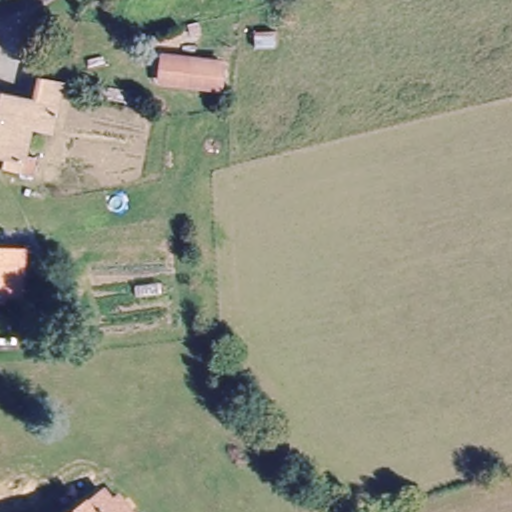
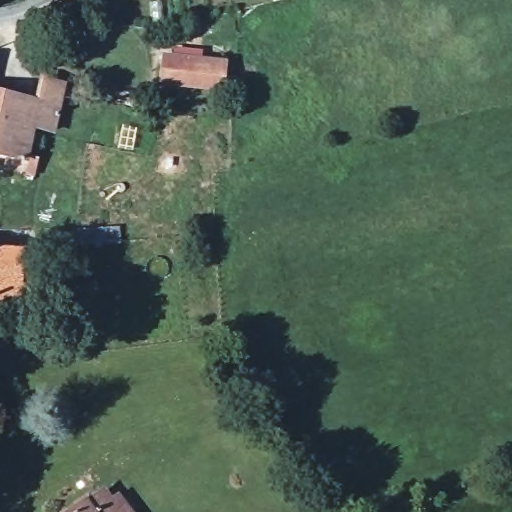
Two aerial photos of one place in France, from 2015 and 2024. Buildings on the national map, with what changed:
unchanged [(255,32),(274,31),(275,47),(255,47),(255,32)]
unchanged [(224,63),(221,89),(161,82),(163,56),(224,63)]
unchanged [(35,100),(42,75),(63,80),(52,126),(32,120),(26,150),(36,153),(32,170),(3,162),(6,150),(0,149),(0,92),(35,100)]
unchanged [(22,297),(3,296),(3,303),(0,303),(0,254),(5,254),(4,273),(23,274),(22,297)]
unchanged [(91,500),(96,496),(103,506),(110,500),(120,512),(74,512),(91,500)]

